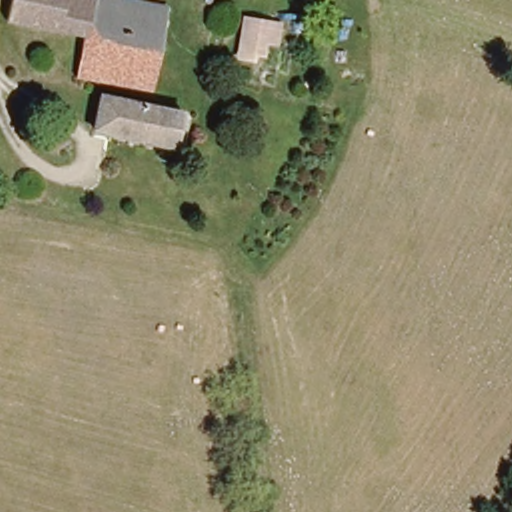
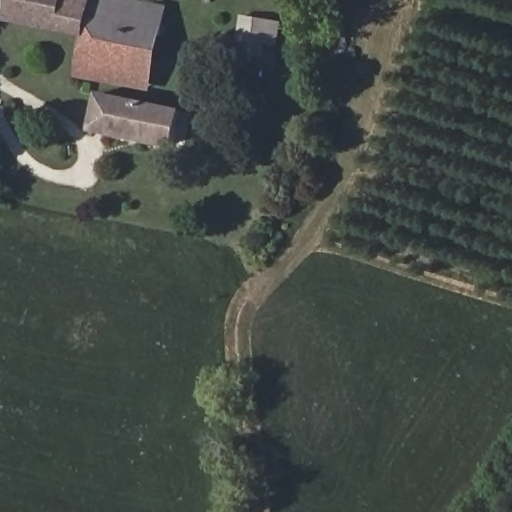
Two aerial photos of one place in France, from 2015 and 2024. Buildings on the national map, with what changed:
unchanged [(72,76),(77,47),(80,32),(13,22),(16,0),(153,0),(165,2),(157,43),(140,40),(129,85),(100,81),(72,76)]
unchanged [(270,19),(266,47),(256,45),(254,60),(236,59),(241,14),(270,19)]
unchanged [(154,89),(129,85),(140,40),(157,43),(163,45),(154,89)]
unchanged [(156,102),(188,108),(180,151),(108,138),(90,135),(99,87),(157,97),(156,102)]

